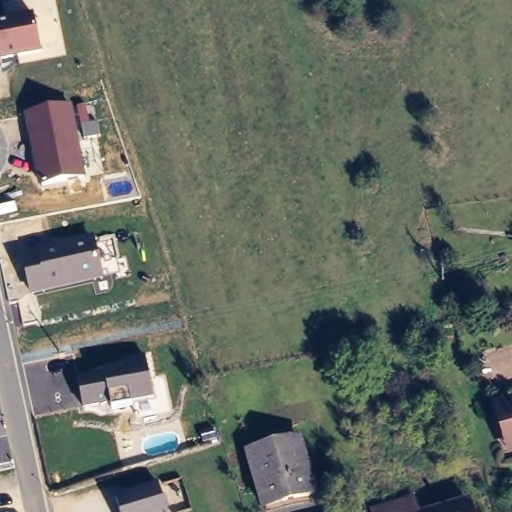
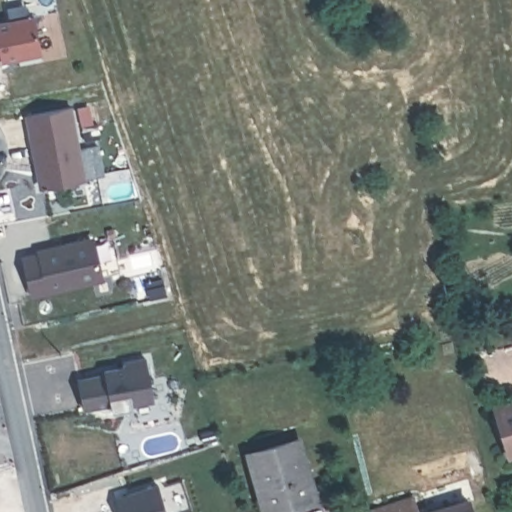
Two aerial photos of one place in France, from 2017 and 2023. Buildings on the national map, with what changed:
unchanged [(0,62),(0,22),(34,15),(43,53),(0,62)]
unchanged [(40,188),(25,115),(73,106),(86,180),(40,188)]
unchanged [(103,283),(29,298),(19,254),(93,241),(103,283)]
unchanged [(111,409),(111,406),(83,412),(76,381),(103,375),(102,368),(145,359),(154,402),(111,409)]
unchanged [(492,403),(512,398),(512,452),(503,454),(501,444),(492,403)]
unchanged [(296,434),(313,490),(263,506),(246,451),(296,434)]
unchanged [(115,497),(159,482),(169,512),(120,512),(115,497)]
unchanged [(364,506),(412,494),(414,508),(480,493),(483,512),(366,512),(364,506)]

